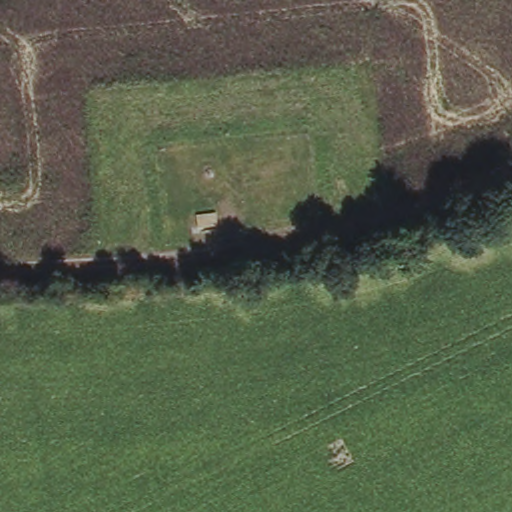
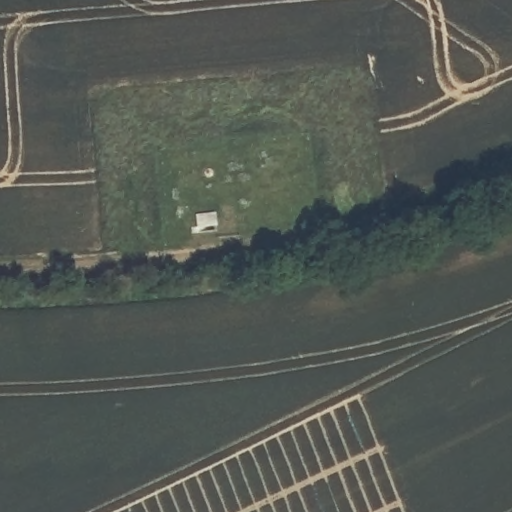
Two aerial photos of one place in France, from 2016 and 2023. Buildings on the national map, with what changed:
unchanged [(210,163),(212,164),(214,165),(215,166),(216,169),(216,171),(216,173),(215,175),(214,176),(212,178),(210,179),(208,179),(206,179),(204,178),(202,176),(201,175),(200,173),(200,171),(200,169),(201,166),(202,165),(204,164),(206,163),(208,162),(210,163)]
unchanged [(241,206),(243,207),(245,208),(247,210),(247,212),(248,214),(247,217),(247,219),(245,221),(243,222),(241,223),(239,223),(237,223),(234,222),(233,221),(231,219),(230,217),(230,214),(230,212),(231,210),(232,208),(234,207),(236,206),(239,205),(241,206)]
unchanged [(195,217),(214,215),(216,229),(197,231),(195,217)]

